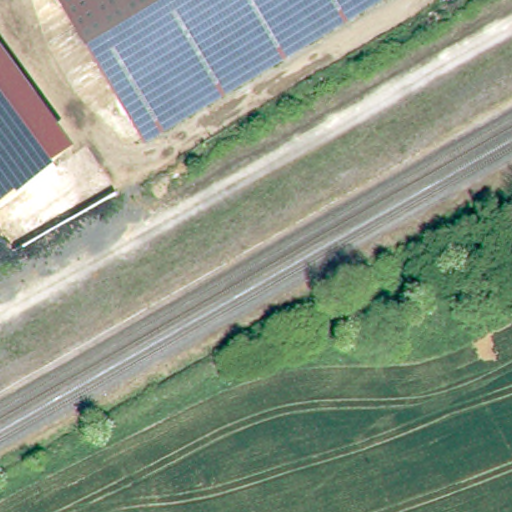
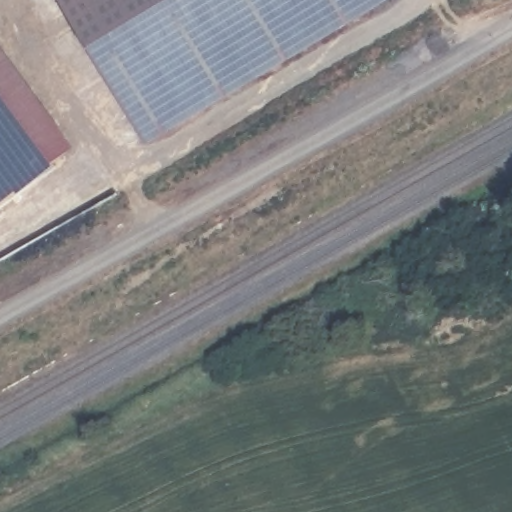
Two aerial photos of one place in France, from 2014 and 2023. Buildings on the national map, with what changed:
unchanged [(146,142),(62,0),(382,0),(146,142)]
unchanged [(0,208),(0,45),(77,149),(0,208)]

